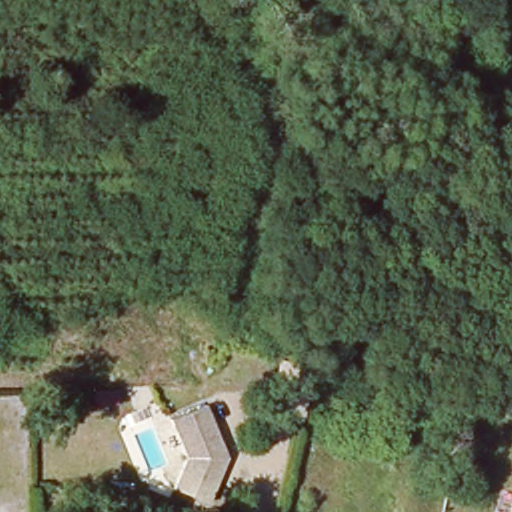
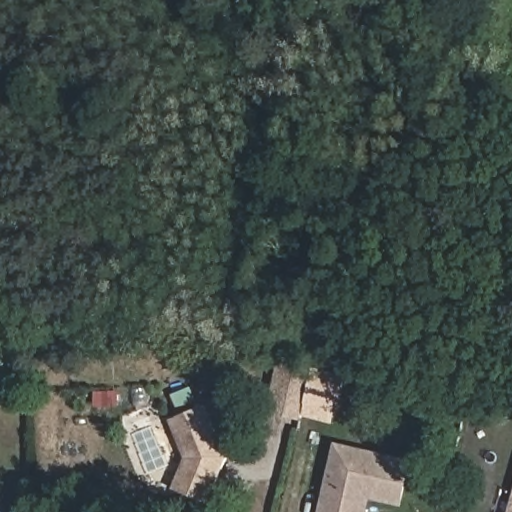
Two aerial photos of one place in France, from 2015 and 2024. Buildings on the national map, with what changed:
unchanged [(314,366),(301,424),(267,418),(279,359),(314,366)]
unchanged [(227,456),(208,506),(171,489),(186,456),(169,420),(207,405),(227,456)]
new [(402,506),(371,499),(368,512),(320,512),(335,444),(412,461),(402,506)]
unchanged [(512,512),(510,512),(512,505),(512,512)]

